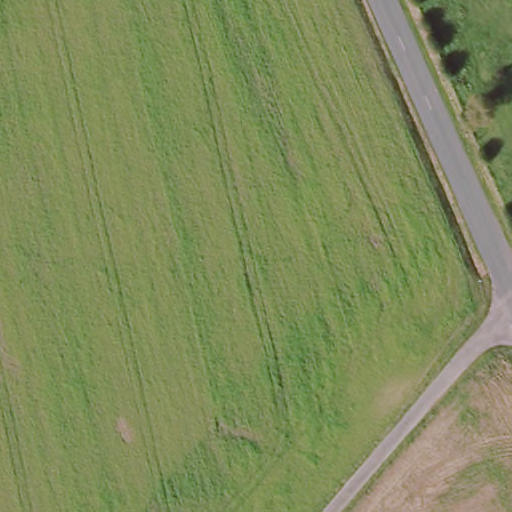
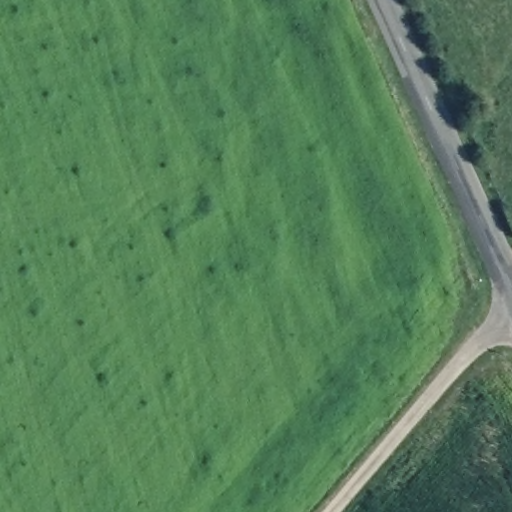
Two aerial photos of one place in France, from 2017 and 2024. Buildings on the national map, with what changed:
[]

